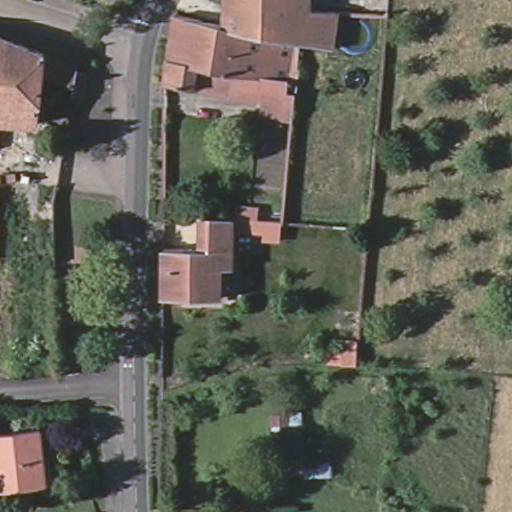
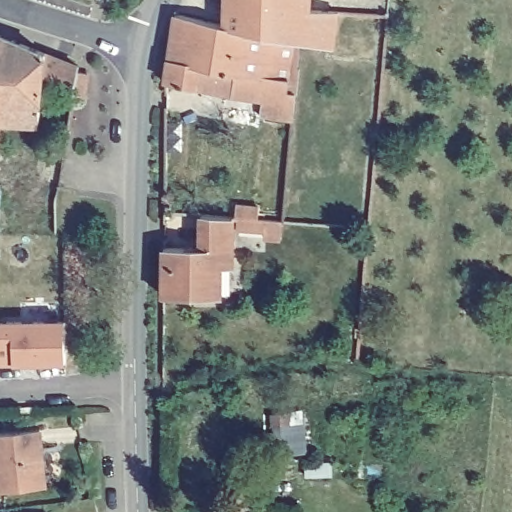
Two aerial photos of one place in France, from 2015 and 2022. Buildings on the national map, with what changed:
unchanged [(238,97),(238,93),(202,84),(202,86),(172,80),(181,24),(183,14),(231,25),(233,0),(319,0),(318,14),(345,15),(336,51),(305,45),(279,41),(279,46),(304,51),(302,75),(297,74),(295,108),(300,109),(299,126),(269,121),(272,104),(238,97)]
unchanged [(45,47),(41,73),(35,117),(0,114),(0,28),(45,47)]
unchanged [(81,62),(72,120),(55,119),(61,76),(41,73),(45,47),(81,62)]
unchanged [(83,80),(97,81),(95,104),(81,103),(83,80)]
demolished [(28,156),(27,186),(0,185),(0,154),(28,156)]
unchanged [(249,263),(237,263),(237,297),(161,296),(161,248),(182,248),(197,248),(199,217),(252,222),(249,263)]
new [(66,365),(14,365),(14,363),(0,364),(0,321),(65,321),(66,365)]
unchanged [(11,413),(11,407),(11,399),(24,399),(25,407),(25,412),(11,413)]
unchanged [(42,425),(52,480),(3,488),(0,470),(0,432),(42,425)]

